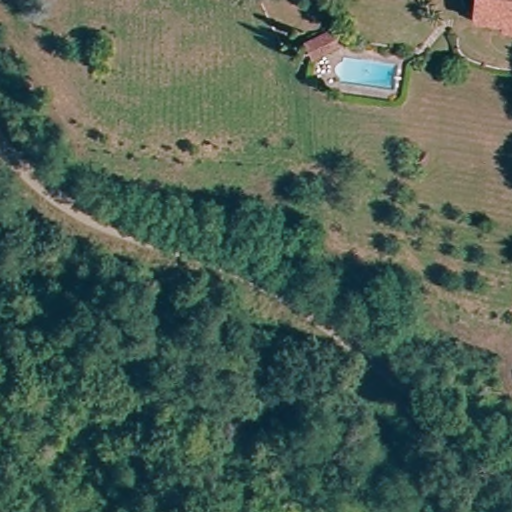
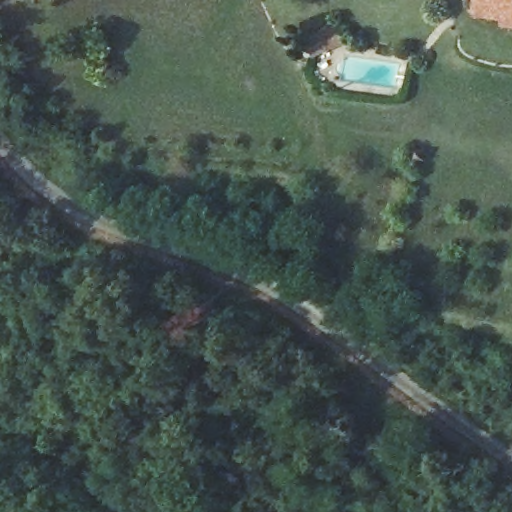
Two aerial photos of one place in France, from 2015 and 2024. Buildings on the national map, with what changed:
unchanged [(487,0),(494,0),(495,16),(512,17),(512,27),(487,25),(487,0)]
unchanged [(494,0),(512,0),(512,17),(495,16),(494,0)]
unchanged [(330,51),(341,65),(316,82),(306,68),(330,51)]

